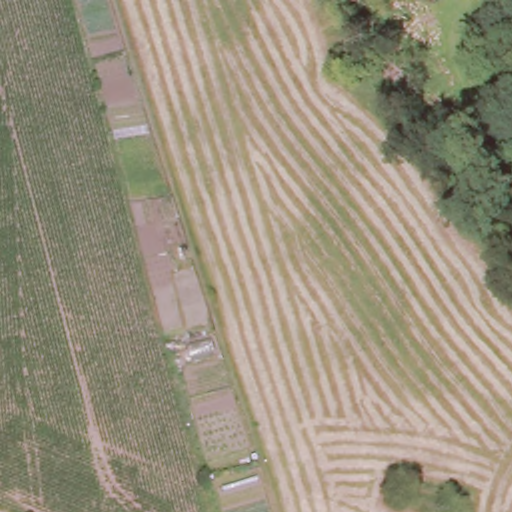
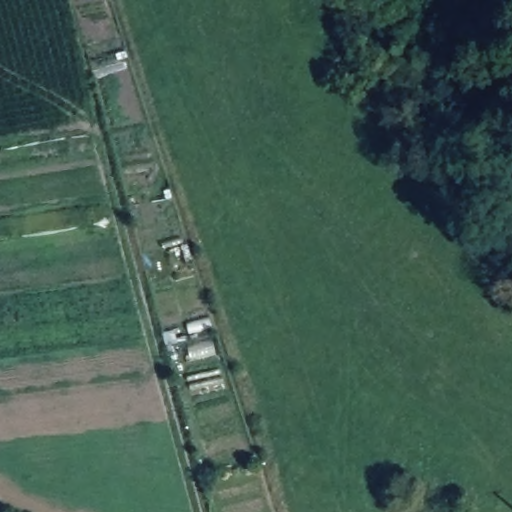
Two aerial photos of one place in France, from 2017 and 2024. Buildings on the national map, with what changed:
[]

